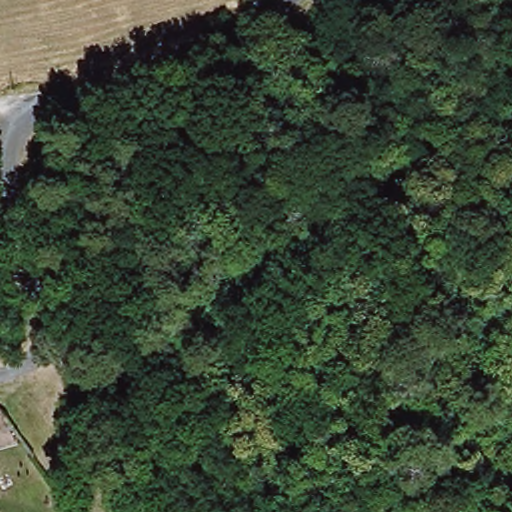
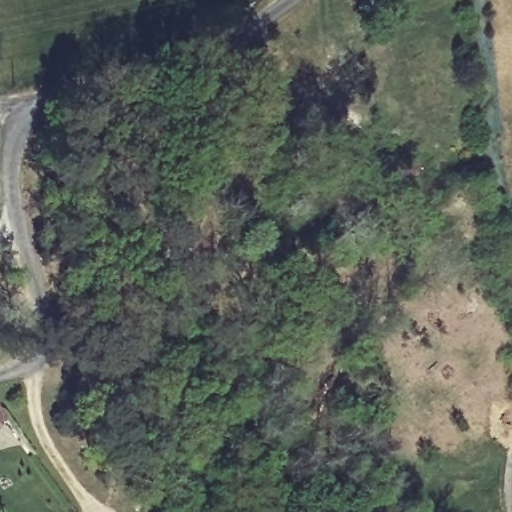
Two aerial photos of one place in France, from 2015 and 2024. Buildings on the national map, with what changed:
unchanged [(374,15),(374,0),(381,0),(381,15),(374,15)]

